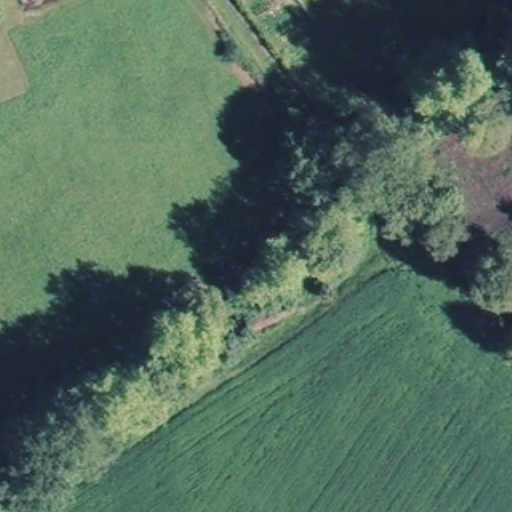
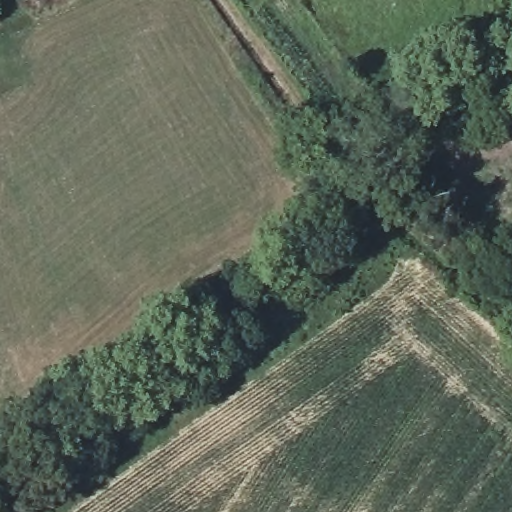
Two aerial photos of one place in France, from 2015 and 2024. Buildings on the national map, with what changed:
[]

